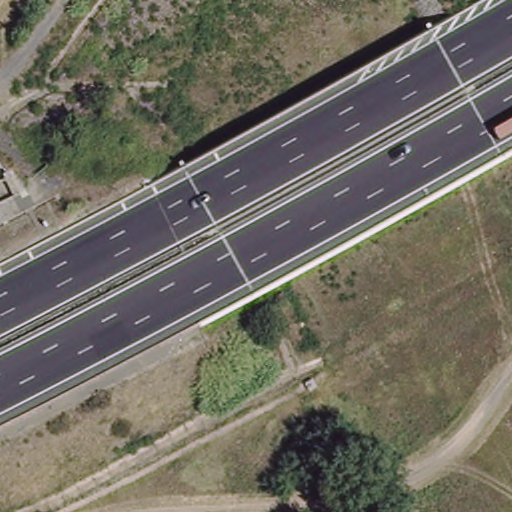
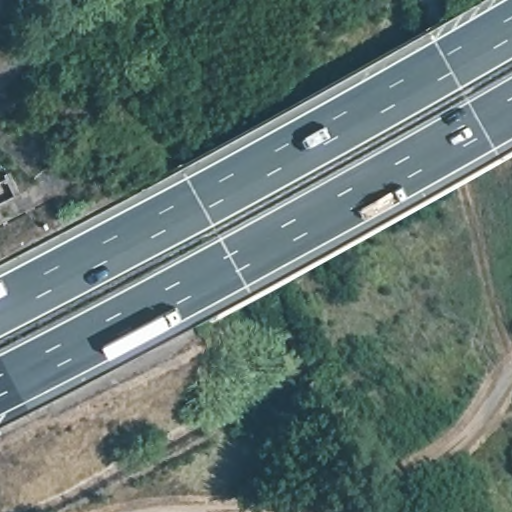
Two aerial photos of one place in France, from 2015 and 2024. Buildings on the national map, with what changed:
[]

